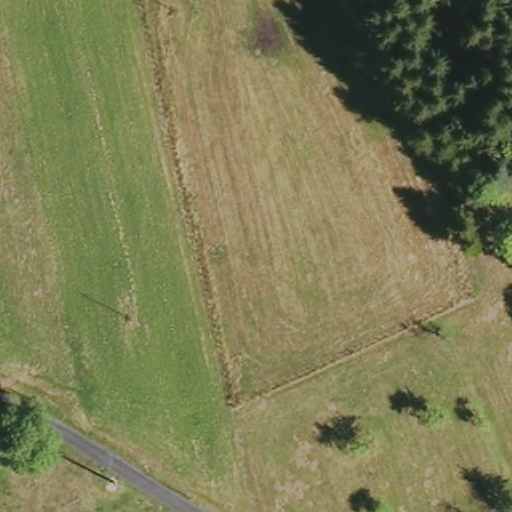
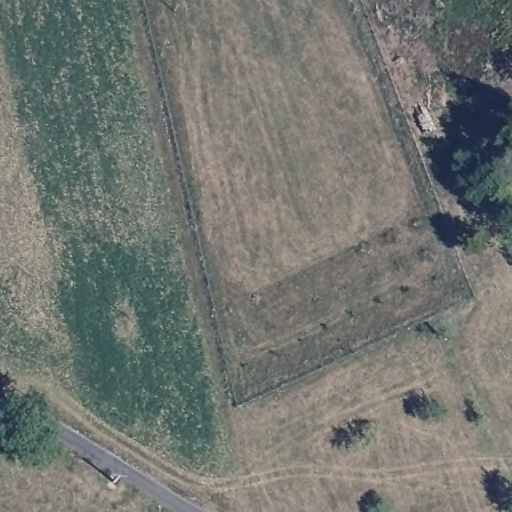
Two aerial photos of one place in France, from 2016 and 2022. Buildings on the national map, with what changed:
[]

